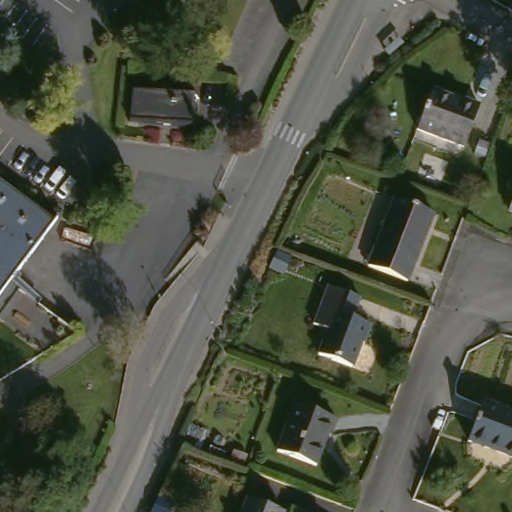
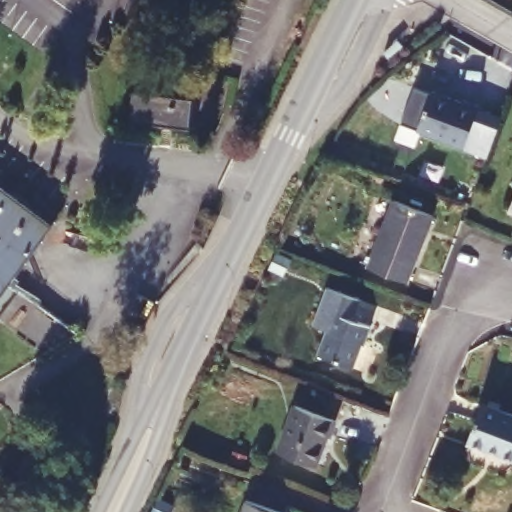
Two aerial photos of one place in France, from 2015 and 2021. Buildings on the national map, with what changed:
unchanged [(421,129),(436,91),(467,105),(470,101),(485,107),(465,149),(421,129)]
unchanged [(201,99),(199,126),(131,121),(134,94),(201,99)]
unchanged [(13,274),(82,326),(41,349),(0,319),(0,178),(55,218),(13,274)]
unchanged [(366,262),(398,196),(433,213),(400,278),(366,262)]
unchanged [(299,254),(292,271),(277,265),(285,248),(299,254)]
unchanged [(350,321),(352,327),(367,333),(361,350),(358,349),(349,374),(315,361),(324,336),(310,331),(325,293),(357,305),(352,320),(350,321)]
unchanged [(474,440),(482,401),(512,406),(512,448),(474,440)]
unchanged [(297,407),(338,424),(331,441),(326,439),(314,468),(278,452),(297,407)]
unchanged [(282,512),(246,512),(251,500),(282,512)]

